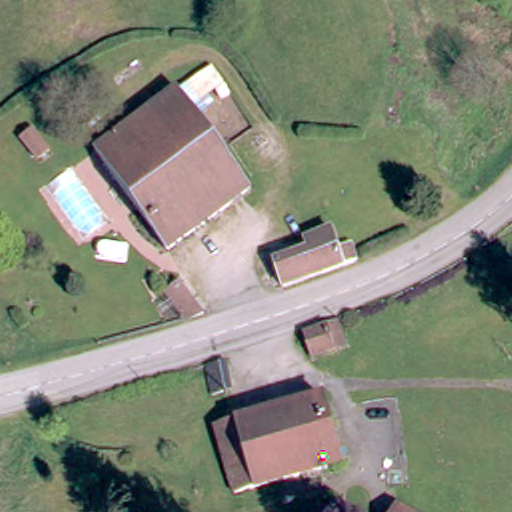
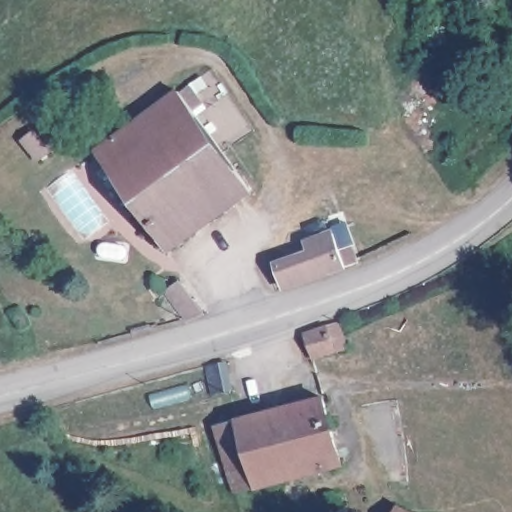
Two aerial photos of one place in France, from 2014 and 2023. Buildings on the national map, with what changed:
unchanged [(249,187),(168,246),(95,150),(178,90),(249,187)]
unchanged [(259,262),(274,256),(271,247),(289,239),(319,228),(331,223),(339,252),(343,263),(268,287),(259,262)]
unchanged [(191,319),(168,288),(181,278),(206,312),(191,319)]
unchanged [(310,357),(301,332),(339,320),(346,344),(310,357)]
unchanged [(213,389),(205,364),(219,359),(227,385),(213,389)]
unchanged [(342,463),(234,493),(214,426),(321,394),(342,463)]
unchanged [(279,506),(278,496),(294,494),(294,505),(279,506)]
unchanged [(407,512),(390,512),(394,505),(407,512)]

